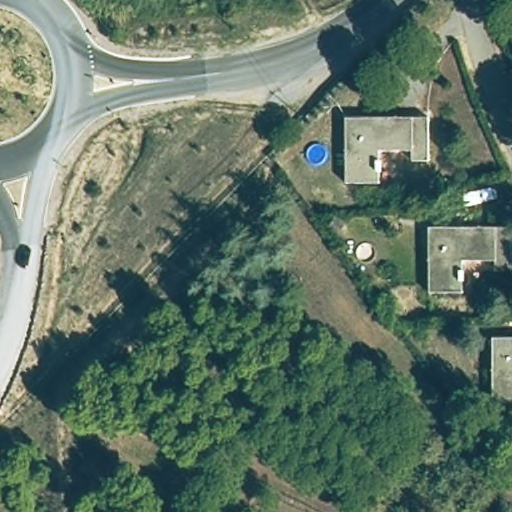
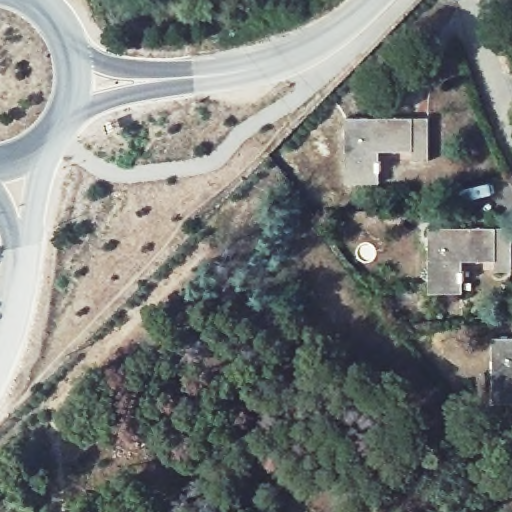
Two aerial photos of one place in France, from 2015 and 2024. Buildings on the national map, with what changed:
unchanged [(426,119),(425,163),(406,163),(406,153),(379,152),(377,186),(343,184),(345,119),(426,119)]
unchanged [(512,228),(511,273),(499,273),(498,267),(465,266),(464,296),(424,295),(428,226),(512,228)]
unchanged [(490,406),(491,337),(512,336),(512,406),(490,406)]

